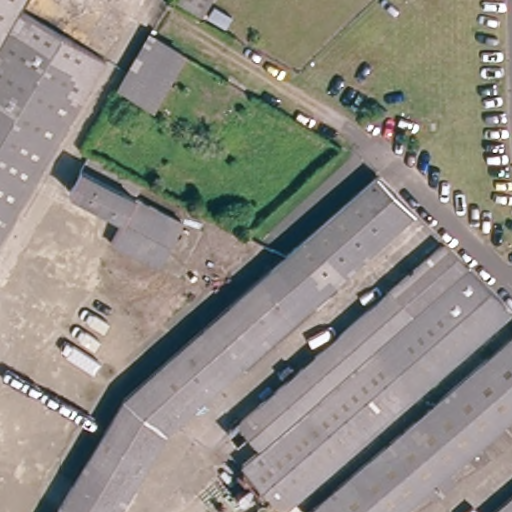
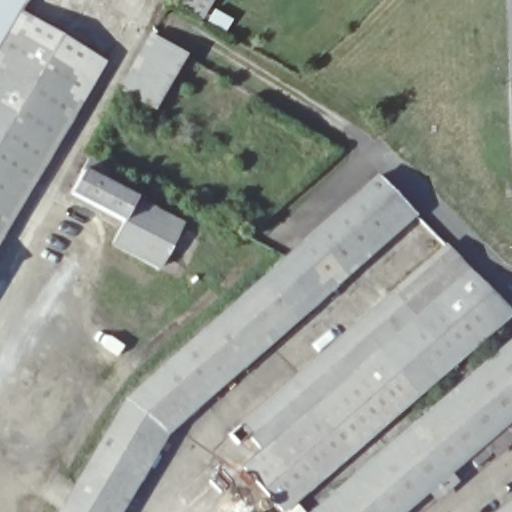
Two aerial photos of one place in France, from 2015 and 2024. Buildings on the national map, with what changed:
unchanged [(21,13),(111,61),(0,247),(0,0),(28,0),(21,13)]
unchanged [(210,6),(241,23),(234,35),(215,27),(216,23),(204,15),(203,17),(178,3),(180,0),(213,0),(210,6)]
unchanged [(147,37),(182,57),(152,109),(117,89),(147,37)]
unchanged [(90,165),(141,192),(137,201),(182,225),(157,270),(113,247),(125,224),(73,197),(90,165)]
unchanged [(275,267),(285,258),(375,178),(412,216),(309,306),(275,267)]
unchanged [(259,452),(251,444),(245,436),(234,445),(226,435),(442,248),(462,268),(510,316),(280,512),(276,512),(239,469),(259,452)]
unchanged [(123,401),(127,397),(275,267),(309,306),(166,432),(164,434),(130,494),(84,466),(123,401)]
unchanged [(312,512),(512,342),(512,421),(406,512),(312,512)]
unchanged [(57,512),(84,466),(130,494),(119,512),(57,512)]
unchanged [(512,512),(497,512),(512,500),(512,512)]

